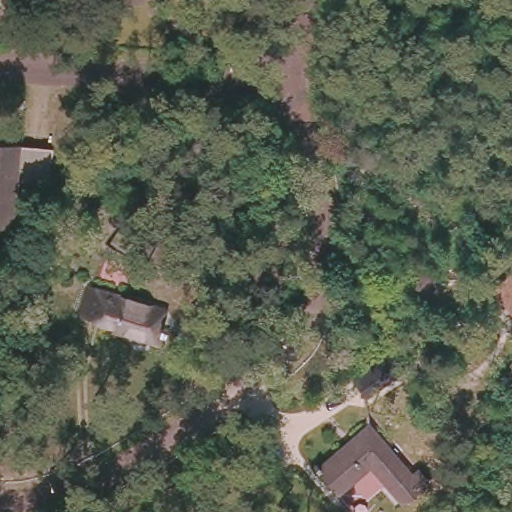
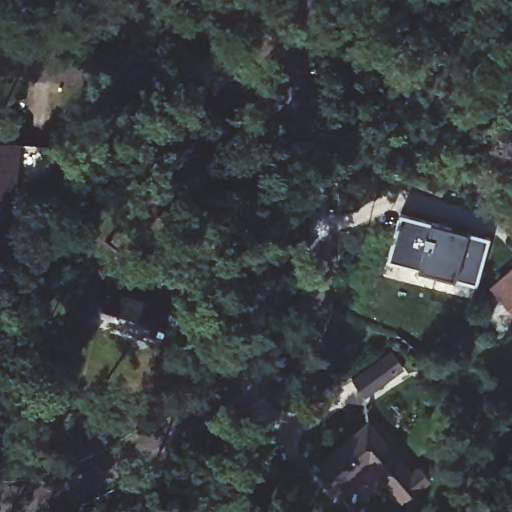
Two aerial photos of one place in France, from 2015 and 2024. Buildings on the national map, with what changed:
unchanged [(0,226),(0,139),(12,140),(12,143),(48,146),(45,182),(9,180),(7,210),(5,226),(0,226)]
new [(401,212),(490,239),(476,286),(387,258),(401,212)]
unchanged [(512,298),(499,282),(512,272),(512,298)]
unchanged [(165,305),(159,318),(165,320),(157,338),(115,322),(115,317),(80,305),(90,278),(165,305)]
unchanged [(359,404),(349,387),(392,364),(400,378),(402,382),(359,404)]
unchanged [(405,497),(372,456),(335,485),(318,463),(320,462),(312,451),(317,447),(322,452),(370,415),(408,465),(417,459),(431,478),(405,497)]

